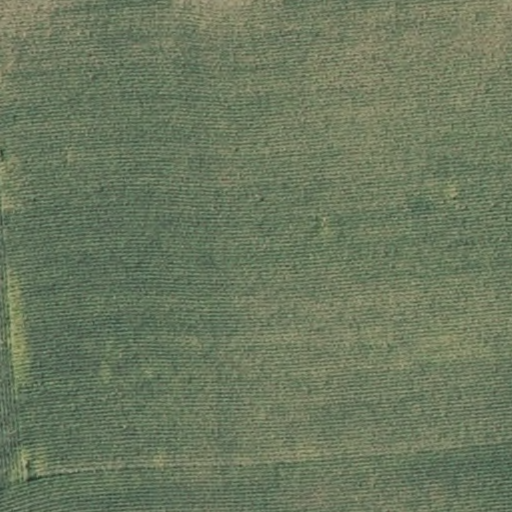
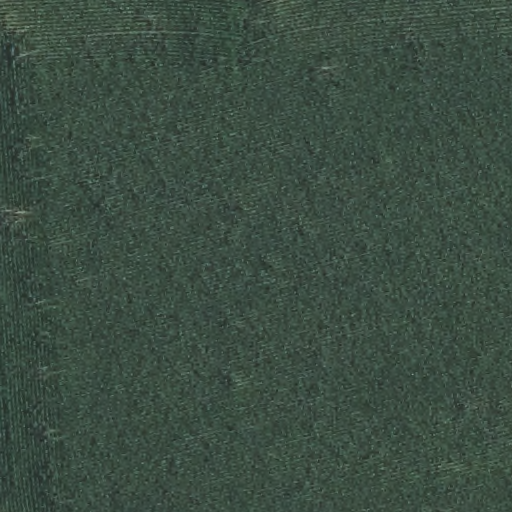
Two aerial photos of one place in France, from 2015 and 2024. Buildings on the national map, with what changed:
[]

